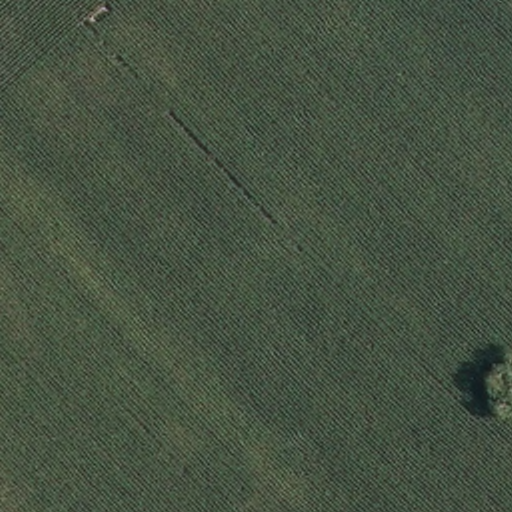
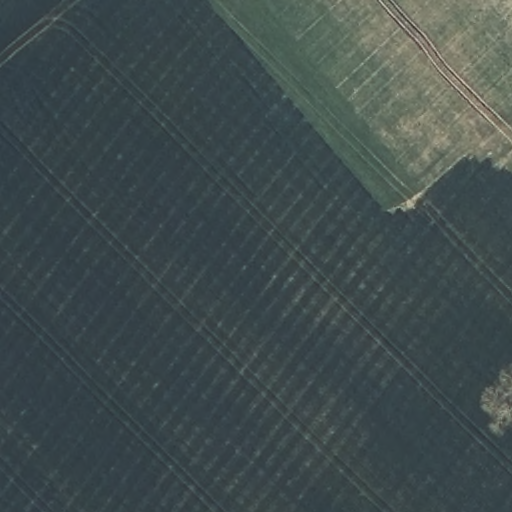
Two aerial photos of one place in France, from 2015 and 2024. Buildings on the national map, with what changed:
[]

